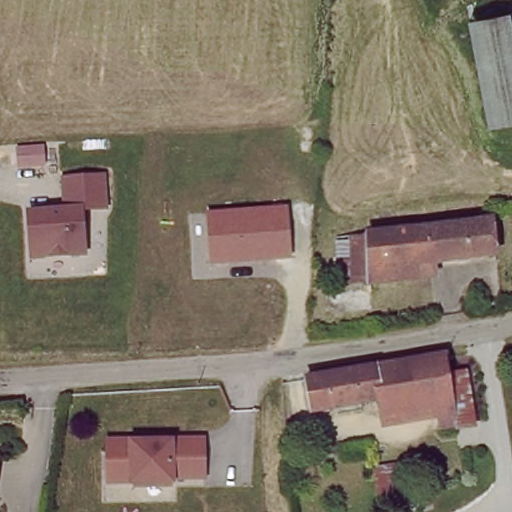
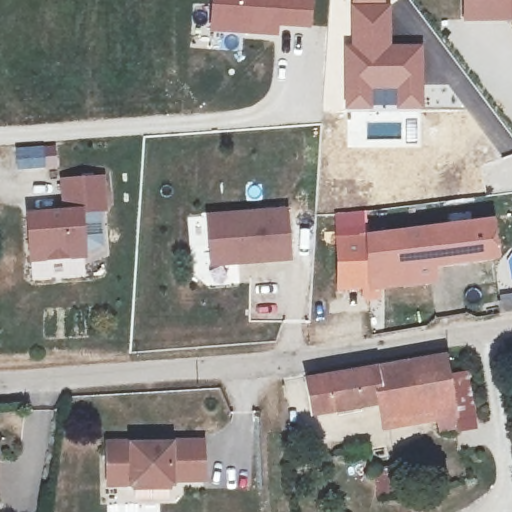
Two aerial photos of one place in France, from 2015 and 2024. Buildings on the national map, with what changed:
new [(313,0),(312,28),(278,26),(278,36),(208,32),(210,0),(313,0)]
new [(350,0),(386,0),(386,3),(391,2),(392,43),(424,42),(425,108),(395,109),(395,107),(343,110),(343,41),(349,40),(350,3),(350,0)]
new [(512,0),(512,20),(465,20),(464,0),(512,0)]
demolished [(512,13),(512,122),(487,127),(472,18),(512,13)]
new [(42,148),(43,167),(18,169),(17,150),(42,148)]
unchanged [(25,216),(62,214),(60,182),(100,180),(102,212),(78,214),(81,258),(28,261),(25,216)]
unchanged [(287,208),(292,261),(211,267),(207,214),(287,208)]
unchanged [(330,235),(346,234),(478,219),(484,218),(487,256),(368,272),(369,286),(352,289),(338,291),(330,235)]
unchanged [(473,416),(458,418),(457,414),(441,416),(437,401),(377,409),(373,395),(310,401),(307,372),(445,352),(450,372),(467,370),(473,416)]
unchanged [(200,487),(102,490),(105,442),(198,440),(200,487)]
unchanged [(0,465),(0,460),(1,460),(0,465)]
unchanged [(393,468),(395,496),(374,498),(372,471),(393,468)]

